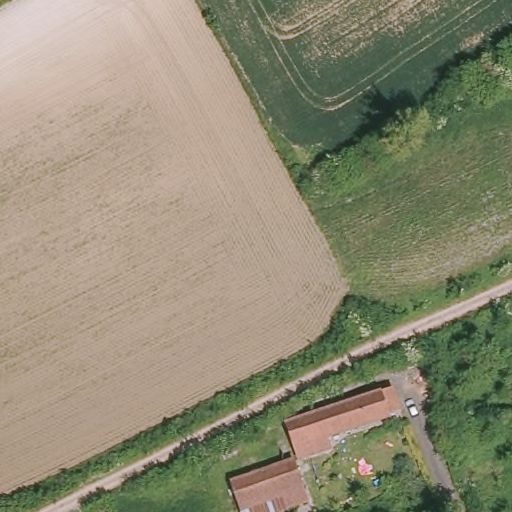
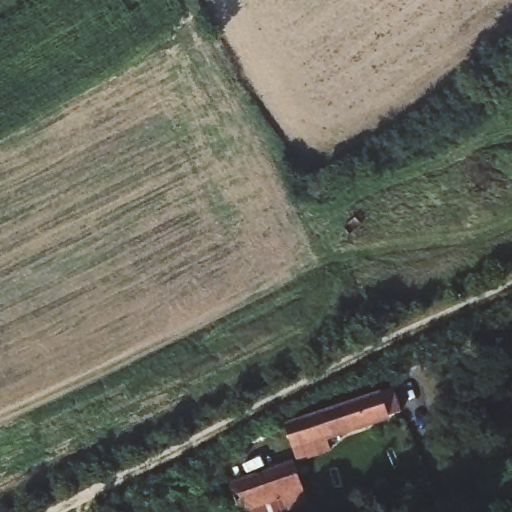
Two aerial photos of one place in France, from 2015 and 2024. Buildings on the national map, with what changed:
unchanged [(304,471),(285,428),(387,383),(402,413),(331,442),(336,457),(304,471)]
unchanged [(234,435),(243,451),(215,463),(207,448),(234,435)]
unchanged [(292,461),(304,489),(247,512),(242,512),(231,487),(265,472),(292,461)]

